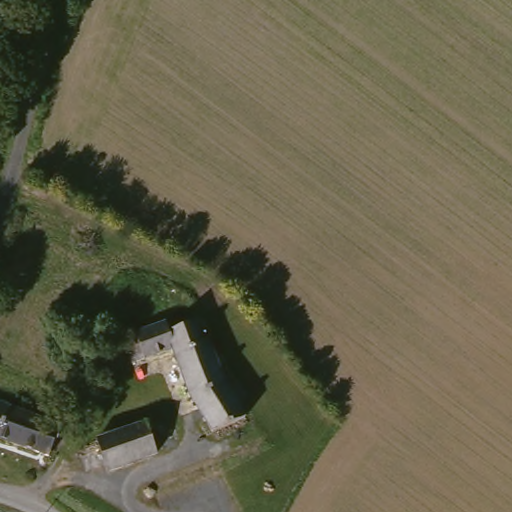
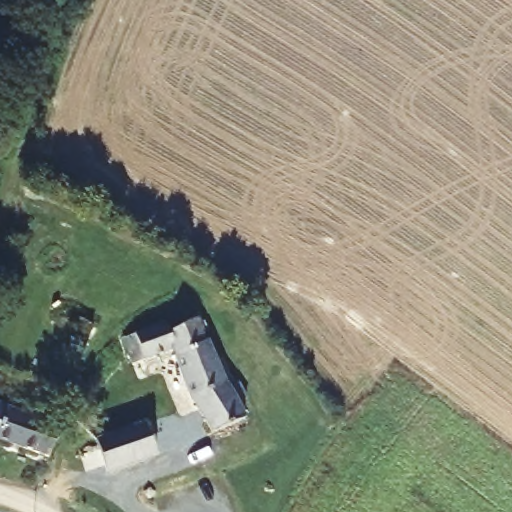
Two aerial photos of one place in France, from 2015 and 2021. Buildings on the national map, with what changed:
unchanged [(192,398),(172,353),(132,364),(119,336),(164,323),(167,330),(193,321),(200,343),(206,343),(224,382),(234,378),(243,393),(233,399),(242,416),(214,434),(192,398)]
unchanged [(89,335),(74,358),(61,349),(76,326),(89,335)]
unchanged [(42,458),(0,444),(0,408),(51,426),(42,458)]
unchanged [(95,439),(146,426),(155,461),(104,474),(95,439)]

